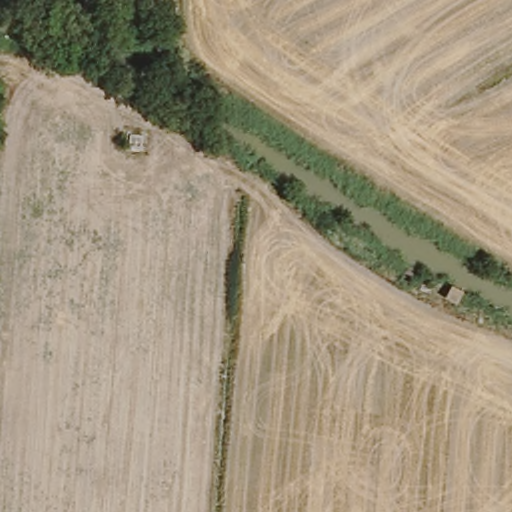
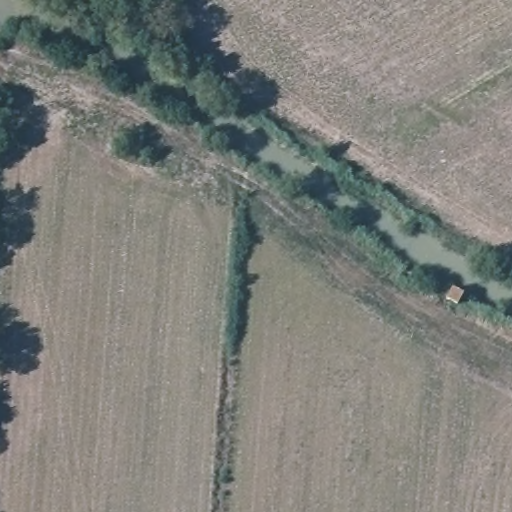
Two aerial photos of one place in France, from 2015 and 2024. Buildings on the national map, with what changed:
unchanged [(440,300),(450,285),(466,293),(455,312),(440,300)]

